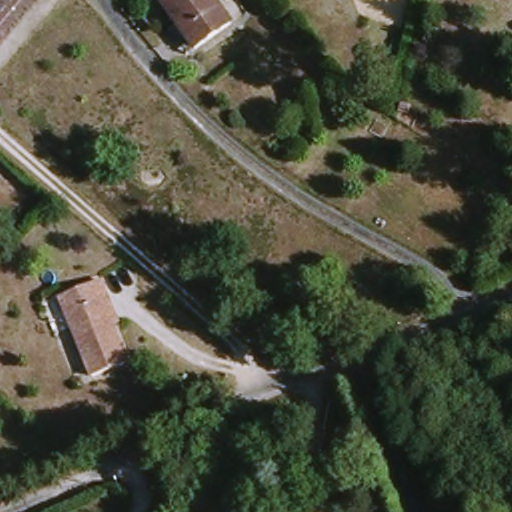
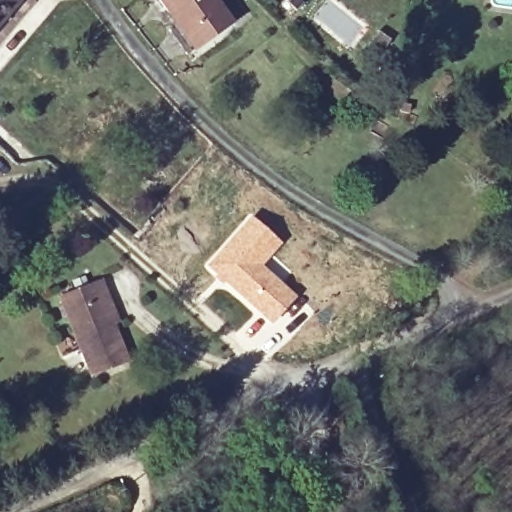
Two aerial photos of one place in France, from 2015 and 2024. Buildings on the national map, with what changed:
unchanged [(0,0),(22,0),(0,25),(0,0)]
unchanged [(199,46),(165,0),(212,0),(230,26),(199,46)]
new [(250,214),(282,243),(263,265),(297,295),(271,324),(219,281),(204,266),(250,214)]
unchanged [(93,380),(61,300),(102,283),(109,300),(119,326),(115,328),(130,366),(93,380)]

